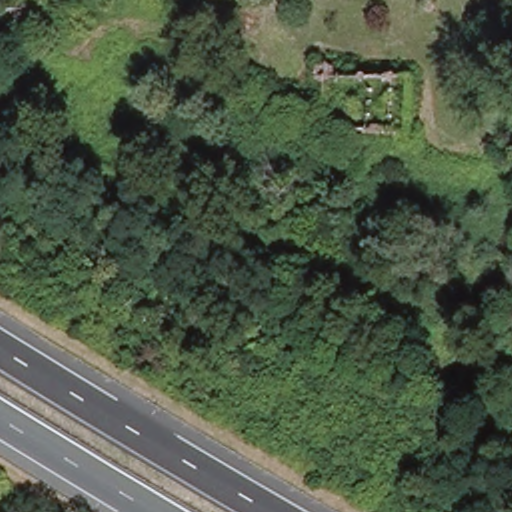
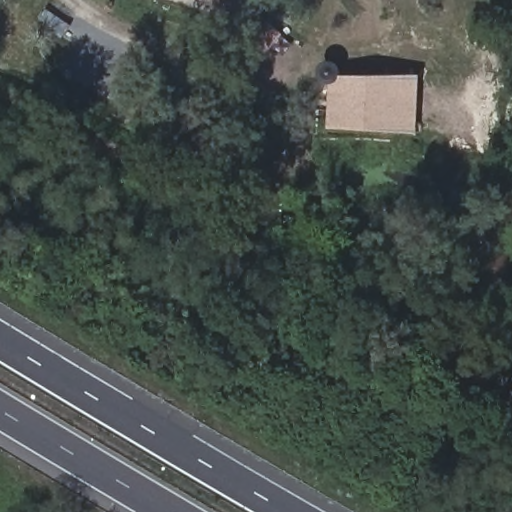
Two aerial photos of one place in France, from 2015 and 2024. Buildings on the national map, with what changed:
new [(326,86),(319,81),(318,77),(318,73),(320,69),(324,66),(328,65),(332,65),(336,67),(339,70),(340,74),(340,79),(415,83),(415,139),(323,136),(326,86)]
demolished [(376,69),(421,73),(411,129),(373,126),(376,69)]

